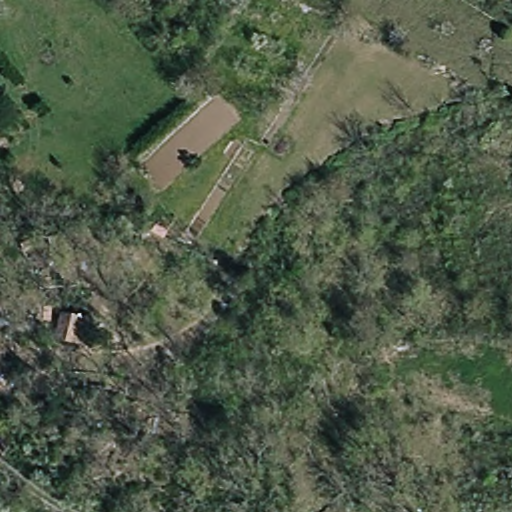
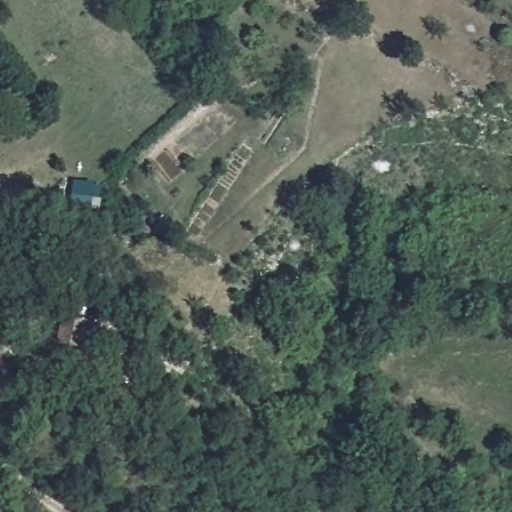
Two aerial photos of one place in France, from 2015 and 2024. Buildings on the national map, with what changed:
unchanged [(64,310),(106,321),(99,350),(58,342),(64,310)]
unchanged [(6,363),(0,370),(0,359),(6,363)]

